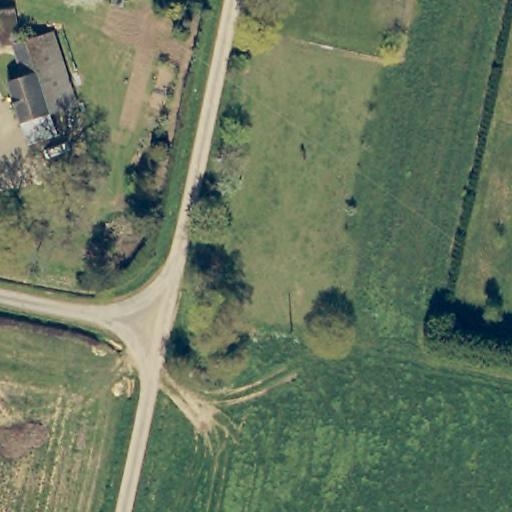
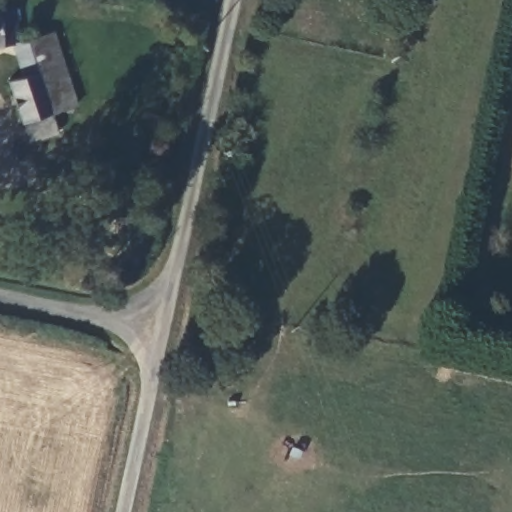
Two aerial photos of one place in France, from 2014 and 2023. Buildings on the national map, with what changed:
unchanged [(23,42),(27,40),(53,114),(54,115),(23,126),(9,84),(24,78),(16,46),(0,49),(0,7),(17,5),(23,42)]
unchanged [(57,31),(81,107),(53,114),(27,40),(57,31)]

